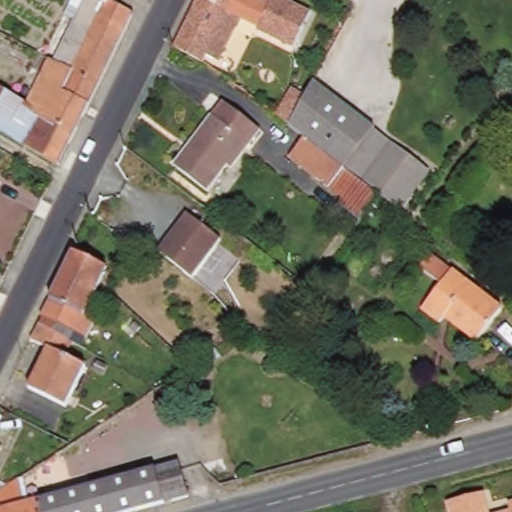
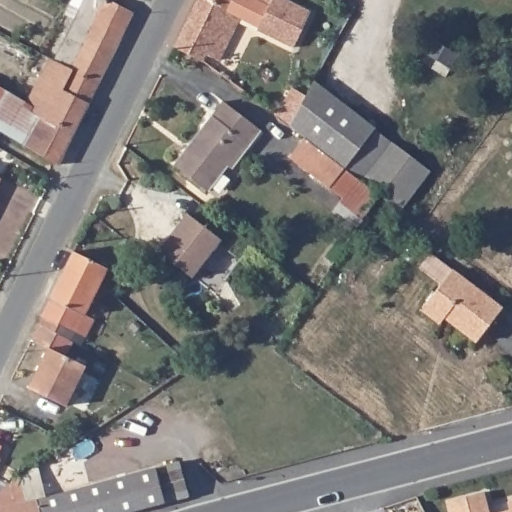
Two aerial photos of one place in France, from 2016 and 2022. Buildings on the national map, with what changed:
unchanged [(69,10),(74,0),(122,0),(139,9),(104,79),(58,55),(79,15),(69,10)]
unchanged [(294,44),(259,27),(262,21),(241,11),(219,57),(208,52),(204,58),(175,43),(196,0),(295,0),(311,8),(294,44)]
unchanged [(58,55),(104,79),(80,127),(32,98),(55,54),(58,55)]
unchanged [(80,127),(63,162),(57,159),(0,124),(0,79),(32,98),(80,127)]
unchanged [(401,214),(386,204),(366,230),(338,207),(342,199),(291,156),(303,138),(288,126),(315,79),(432,171),(401,214)]
unchanged [(261,131),(231,170),(227,168),(209,192),(175,166),(224,102),(261,131)]
unchanged [(216,242),(187,278),(154,253),(182,215),(216,242)]
unchanged [(40,317),(74,252),(107,269),(85,315),(97,320),(87,341),(72,333),(69,340),(39,325),(42,318),(40,317)]
unchanged [(412,269),(423,254),(497,310),(471,342),(440,318),(435,324),(416,309),(434,286),(412,269)]
unchanged [(61,354),(86,367),(65,407),(29,389),(49,349),(61,354)]
unchanged [(167,466),(59,494),(53,476),(162,448),(167,466)]
unchanged [(25,504),(59,494),(167,466),(180,463),(189,496),(128,512),(0,512),(0,490),(19,478),(25,504)]
unchanged [(485,493),(491,512),(451,512),(448,504),(485,493)]
unchanged [(507,505),(512,504),(512,512),(509,512),(507,505)]

